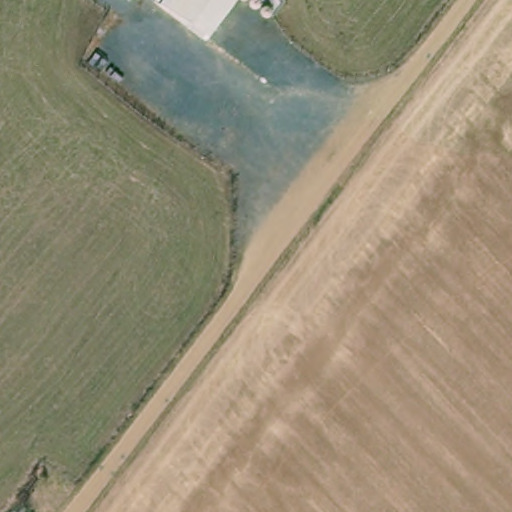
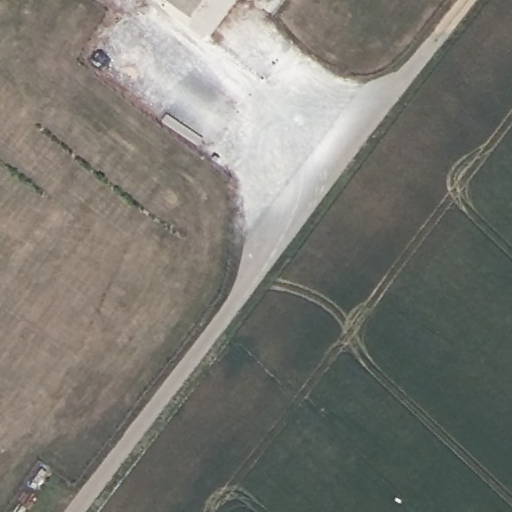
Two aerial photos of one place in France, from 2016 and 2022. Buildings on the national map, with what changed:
unchanged [(170,0),(205,0),(192,16),(170,0)]

